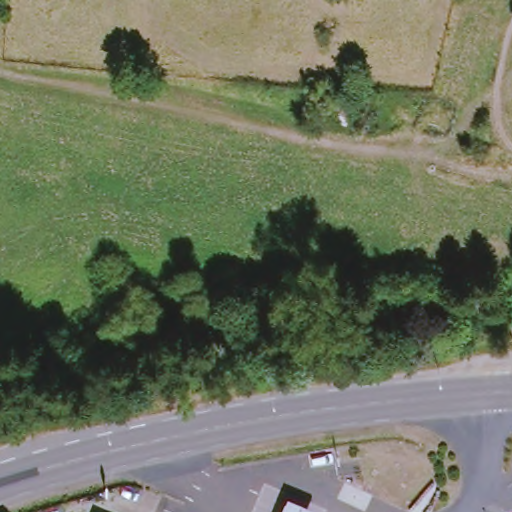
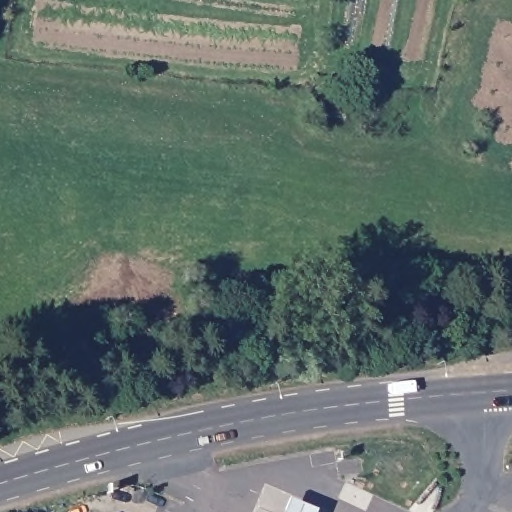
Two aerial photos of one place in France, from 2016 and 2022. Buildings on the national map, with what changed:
unchanged [(292,500),(323,512),(287,512),(292,500)]

